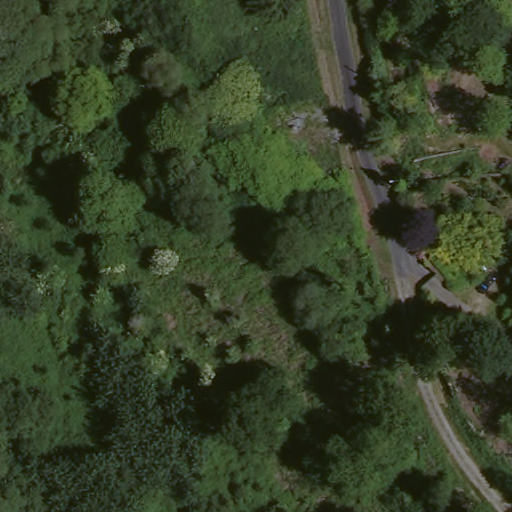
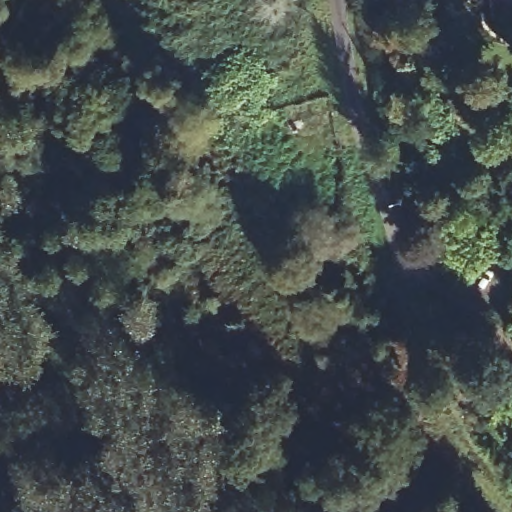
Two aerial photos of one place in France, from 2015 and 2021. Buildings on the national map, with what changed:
[]

